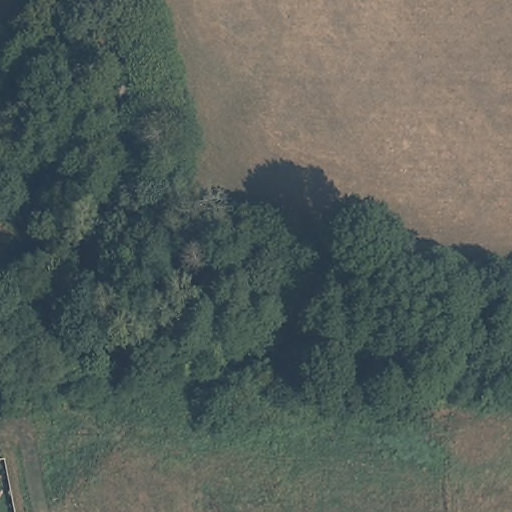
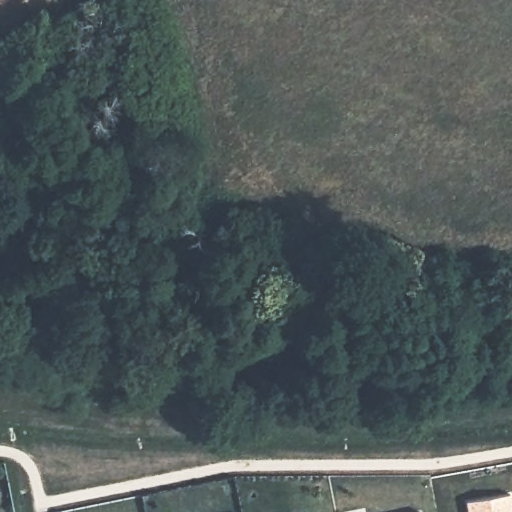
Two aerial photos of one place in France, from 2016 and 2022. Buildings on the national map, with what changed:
new [(512,505),(512,512),(467,512),(465,501),(510,494),(512,505)]
new [(422,512),(410,512),(422,509),(422,512)]

